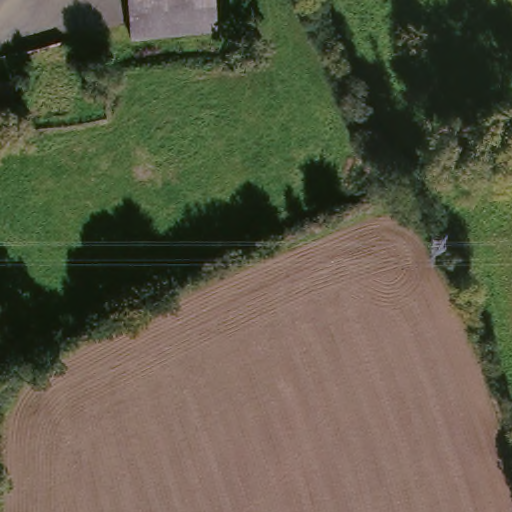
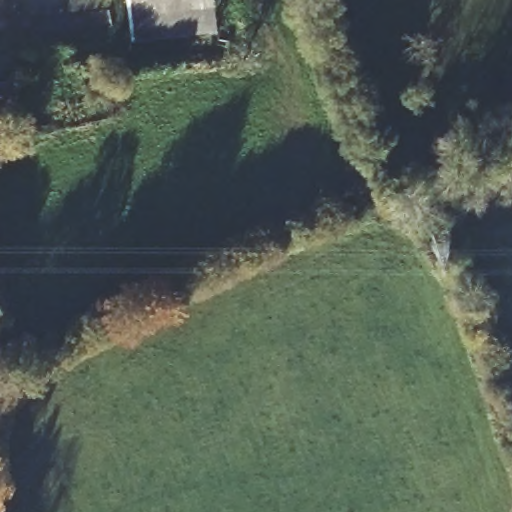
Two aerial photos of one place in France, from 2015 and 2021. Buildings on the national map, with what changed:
unchanged [(130,41),(126,0),(215,0),(219,31),(130,41)]
unchanged [(8,77),(8,95),(5,95),(5,107),(0,108),(0,77),(8,77)]

